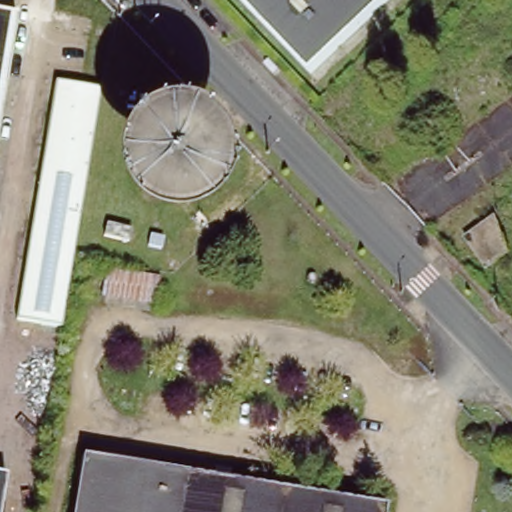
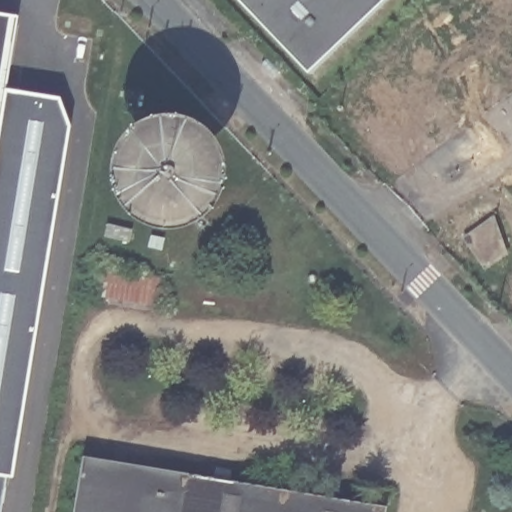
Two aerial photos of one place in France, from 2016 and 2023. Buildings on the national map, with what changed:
unchanged [(247,0),(379,0),(310,66),(247,0)]
unchanged [(0,114),(0,18),(15,21),(0,114)]
unchanged [(283,66),(290,73),(282,81),(276,75),(275,74),(283,66)]
demolished [(75,256),(32,250),(57,86),(100,92),(75,256)]
new [(59,99),(70,127),(12,479),(6,478),(0,512),(0,114),(4,89),(59,99)]
unchanged [(107,227),(130,231),(128,242),(106,238),(107,227)]
unchanged [(497,229),(507,244),(498,251),(503,257),(490,266),(482,252),(487,249),(480,240),(493,231),(497,229)]
demolished [(75,256),(74,259),(63,330),(21,322),(32,250),(75,256)]
unchanged [(155,303),(102,296),(105,270),(159,277),(155,303)]
unchanged [(81,457),(387,505),(386,512),(72,512),(81,457)]
demolished [(0,501),(0,475),(4,476),(0,501)]

